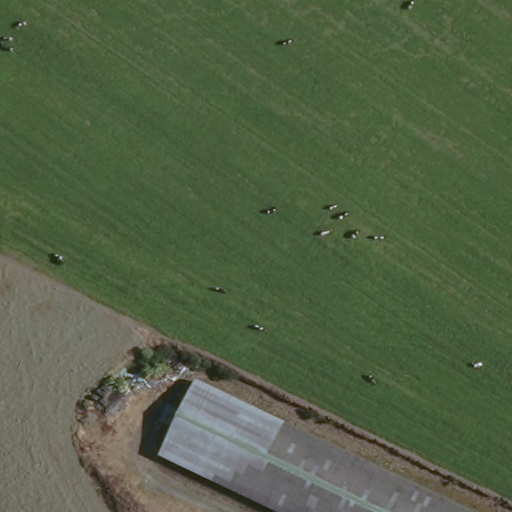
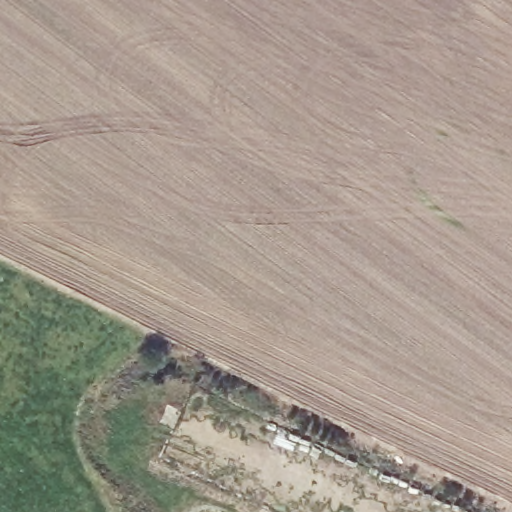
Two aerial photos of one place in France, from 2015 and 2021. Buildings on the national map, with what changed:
demolished [(258,507),(156,457),(194,385),(314,445),(452,512),(269,512),(258,507)]

